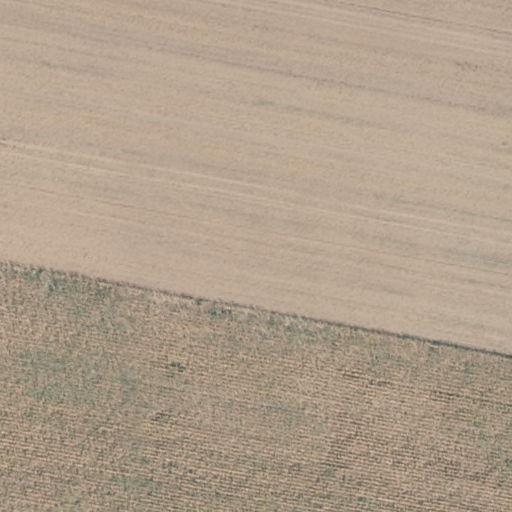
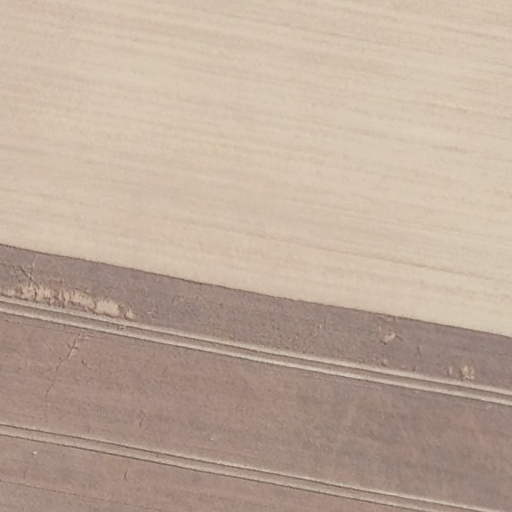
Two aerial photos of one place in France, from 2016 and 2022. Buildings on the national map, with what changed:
[]

